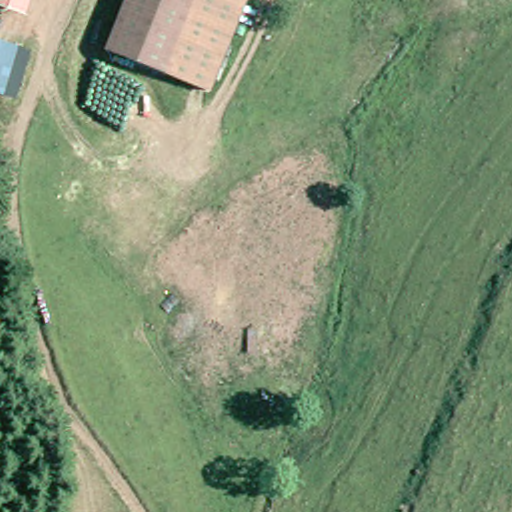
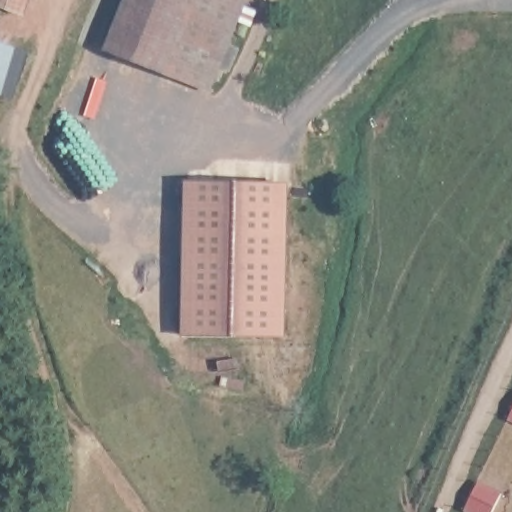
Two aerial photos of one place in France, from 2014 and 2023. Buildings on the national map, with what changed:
unchanged [(0,6),(0,0),(30,0),(25,14),(0,6)]
unchanged [(248,0),(207,92),(105,49),(124,0),(248,0)]
unchanged [(32,51),(15,101),(0,96),(0,39),(32,51)]
new [(286,336),(183,333),(187,181),(290,182),(286,336)]

